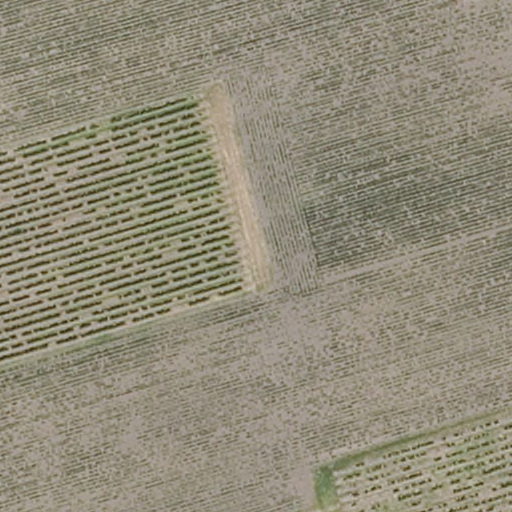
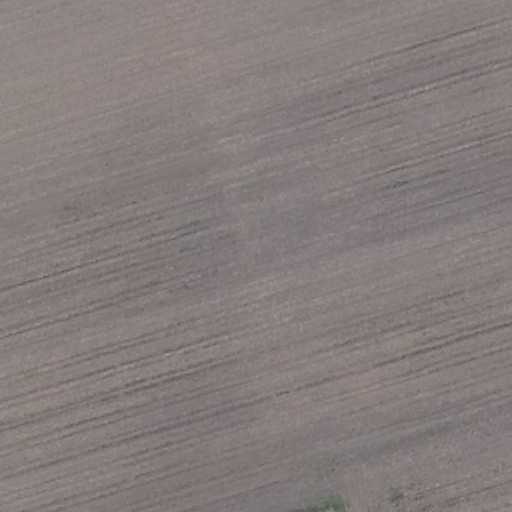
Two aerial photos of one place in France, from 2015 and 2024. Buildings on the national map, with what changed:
[]

